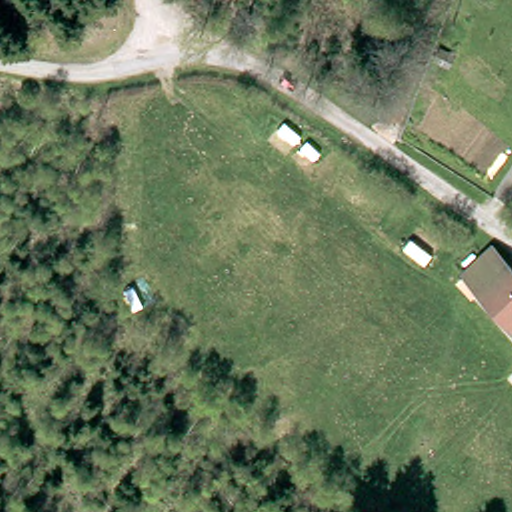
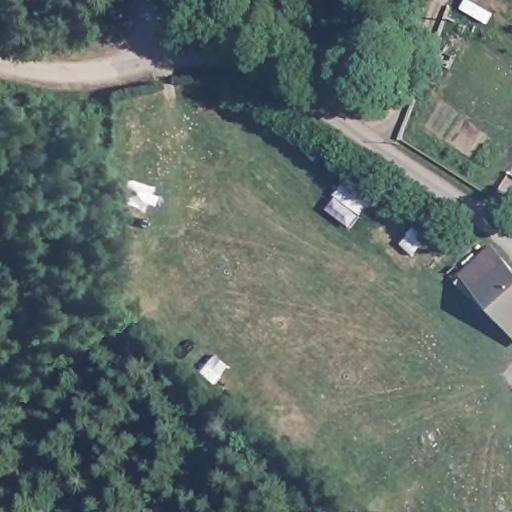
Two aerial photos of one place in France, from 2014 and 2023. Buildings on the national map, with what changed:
unchanged [(454,270),(490,250),(512,269),(512,321),(468,289),(454,270)]

